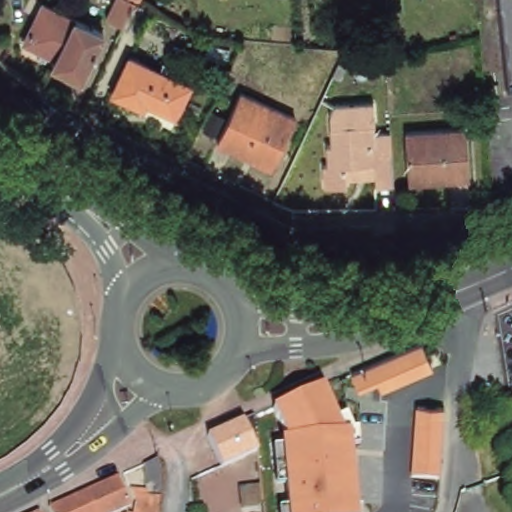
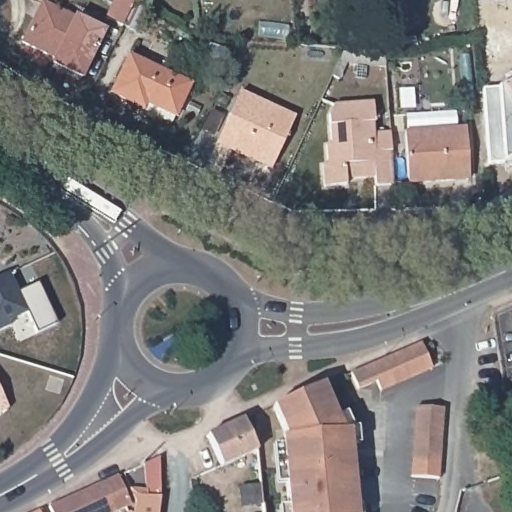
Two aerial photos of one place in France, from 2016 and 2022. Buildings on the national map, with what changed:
new [(113,0),(132,0),(134,1),(122,25),(106,17),(113,0)]
unchanged [(508,98),(499,0),(512,0),(512,97),(508,98)]
unchanged [(98,31),(76,77),(55,67),(58,61),(22,44),(41,4),(98,31)]
unchanged [(187,87),(168,127),(139,113),(140,109),(112,96),(128,59),(187,87)]
unchanged [(292,123),(269,173),(215,148),(239,99),(292,123)]
unchanged [(345,178),(345,184),(323,186),(322,163),(327,163),(326,147),(330,147),(328,119),(333,107),(371,104),(372,120),(369,121),(370,132),(389,131),(391,161),(391,162),(392,183),(375,185),(373,176),(356,177),(345,178)]
unchanged [(462,129),(466,179),(407,184),(402,133),(462,129)]
new [(20,292),(40,282),(60,323),(38,333),(29,313),(10,322),(12,326),(0,331),(0,278),(11,273),(20,292)]
unchanged [(361,382),(371,377),(367,368),(424,343),(429,345),(436,347),(443,366),(390,390),(386,392),(380,395),(374,384),(363,388),(361,382)]
unchanged [(286,506),(283,483),(276,484),(273,444),(282,442),(281,437),(286,436),(272,409),(322,385),(337,417),(343,414),(351,429),(356,430),(359,446),(351,447),(357,505),(360,505),(361,512),(278,512),(278,507),(286,506)]
new [(0,414),(0,388),(10,409),(0,414)]
unchanged [(416,406),(444,408),(440,479),(412,476),(416,406)]
unchanged [(257,413),(260,448),(225,463),(211,433),(257,413)]
unchanged [(129,491),(143,491),(142,466),(156,460),(157,497),(156,510),(156,512),(132,512),(134,502),(129,491)]
unchanged [(113,512),(48,512),(47,508),(115,477),(127,506),(113,512)]

